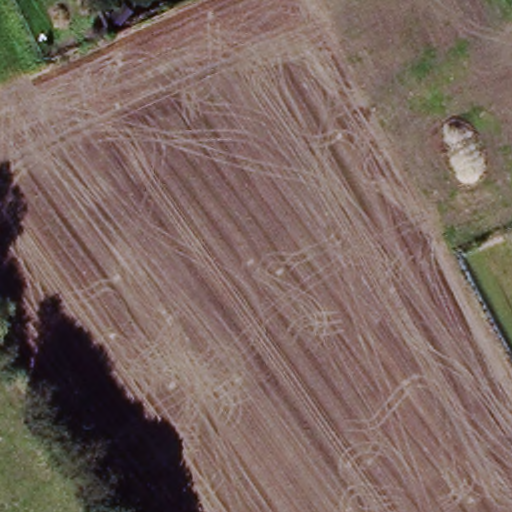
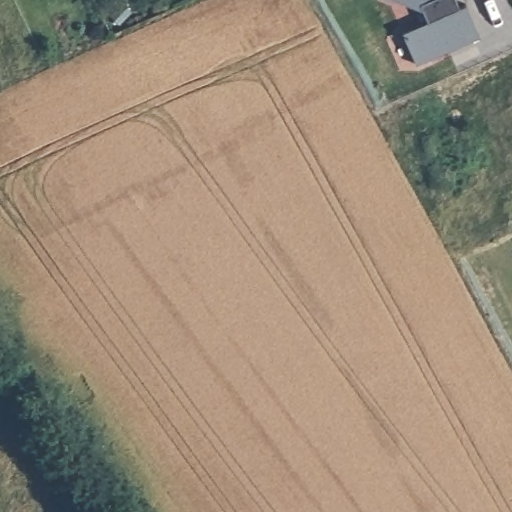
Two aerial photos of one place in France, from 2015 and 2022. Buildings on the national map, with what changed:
new [(462,1),(476,33),(412,61),(398,29),(423,18),(418,7),(401,0),(454,0),(455,4),(462,1)]

